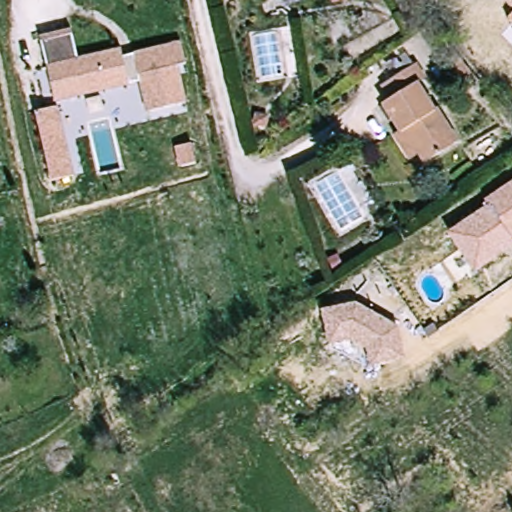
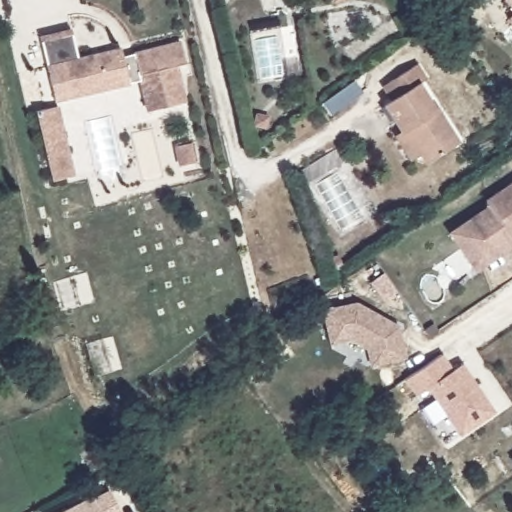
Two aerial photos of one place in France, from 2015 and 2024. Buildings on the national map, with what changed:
unchanged [(505,1),(505,0),(512,0),(512,8),(505,1)]
unchanged [(512,13),(512,22),(508,18),(512,13)]
unchanged [(55,98),(43,33),(75,27),(80,56),(124,48),(125,60),(136,58),(186,48),(190,70),(181,71),(188,110),(151,116),(143,80),(131,82),(102,88),(83,91),(55,98)]
unchanged [(394,133),(404,127),(389,105),(397,99),(387,84),(393,80),(421,61),(431,76),(422,81),(441,107),(444,105),(469,140),(434,165),(424,150),(412,159),(394,133)]
unchanged [(52,177),(38,108),(60,104),(74,174),(52,177)]
unchanged [(448,231),(488,205),(485,201),(512,181),(512,237),(511,238),(512,240),(512,245),(476,271),(448,231)]
new [(395,288),(381,297),(369,279),(383,270),(395,288)]
unchanged [(370,363),(366,349),(350,339),(329,344),(321,310),(356,302),(397,327),(404,356),(370,363)]
new [(451,367),(461,361),(465,367),(494,410),(460,433),(428,386),(416,394),(405,377),(441,352),(451,367)]
new [(88,499),(90,501),(105,493),(116,512),(64,512),(88,499)]

